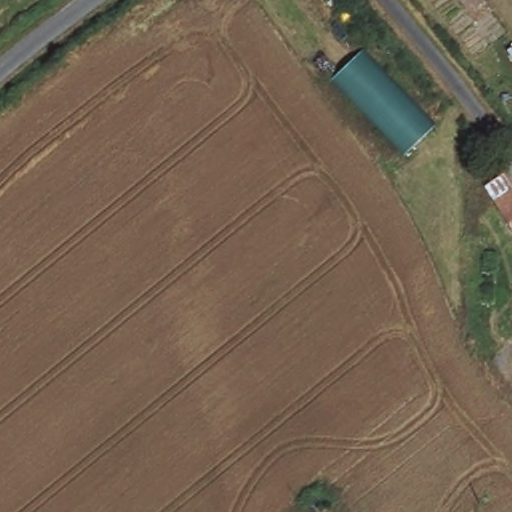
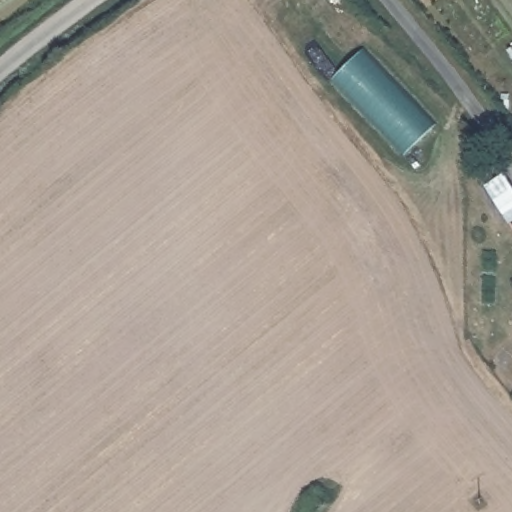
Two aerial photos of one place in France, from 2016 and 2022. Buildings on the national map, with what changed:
unchanged [(401,157),(331,80),(362,52),(433,129),(401,157)]
unchanged [(504,165),(512,178),(512,219),(486,176),(504,165)]

